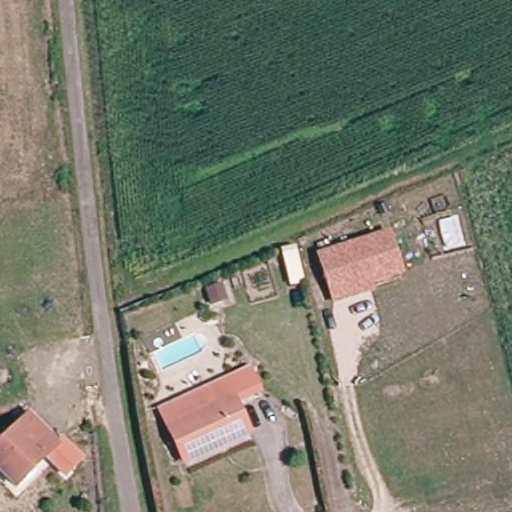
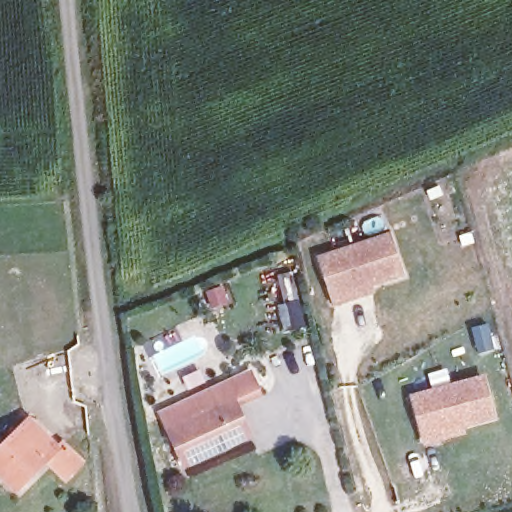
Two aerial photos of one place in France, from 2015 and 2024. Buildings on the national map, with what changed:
unchanged [(316,258),(390,234),(406,278),(374,289),(375,295),(332,308),(316,258)]
unchanged [(181,463),(164,430),(155,412),(221,381),(245,370),(254,387),(229,399),(245,432),(181,463)]
new [(485,374),(497,420),(465,428),(466,435),(424,446),(410,394),(485,374)]
unchanged [(19,493),(0,478),(0,457),(30,426),(57,452),(19,493)]

